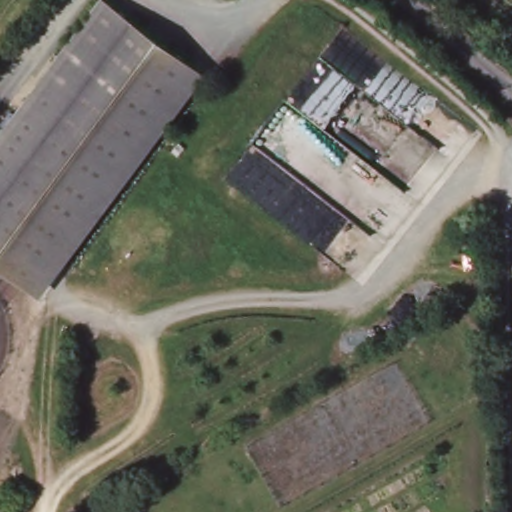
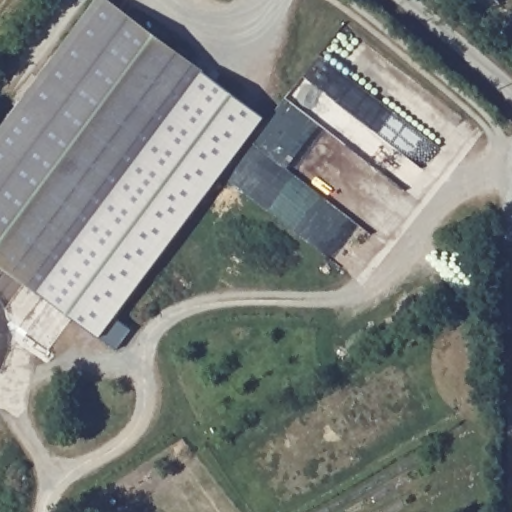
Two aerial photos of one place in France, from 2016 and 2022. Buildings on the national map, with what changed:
unchanged [(206,74),(39,297),(0,267),(0,131),(98,0),(108,0),(206,74)]
new [(265,117),(100,341),(39,297),(206,74),(265,117)]

